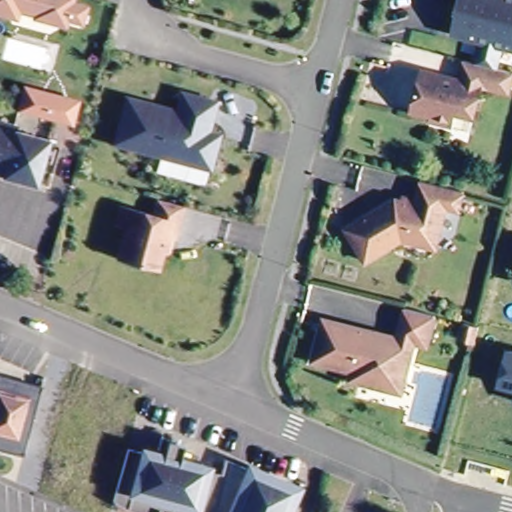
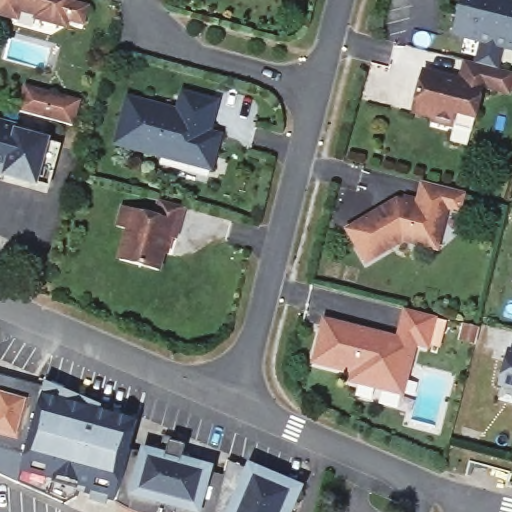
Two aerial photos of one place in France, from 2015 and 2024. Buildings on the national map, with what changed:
unchanged [(86,7),(81,24),(66,20),(58,25),(38,19),(35,15),(18,11),(8,17),(0,15),(0,0),(70,0),(71,3),(86,7)]
unchanged [(499,68),(495,67),(483,64),(479,63),(485,42),(455,34),(460,12),(459,12),(463,0),(512,0),(512,50),(505,49),(499,68)]
unchanged [(433,121),(434,117),(414,112),(425,70),(461,79),(466,60),(479,63),(483,64),(495,67),(499,68),(512,71),(512,92),(485,86),(477,118),(473,131),(456,127),(433,121)]
unchanged [(80,97),(74,123),(17,110),(23,85),(80,97)]
unchanged [(221,136),(212,169),(119,142),(131,98),(180,111),(185,94),(219,102),(210,133),(221,136)]
unchanged [(17,126),(16,131),(48,140),(47,142),(58,145),(47,185),(36,182),(35,185),(0,175),(0,121),(17,126)]
unchanged [(426,249),(406,244),(369,266),(350,233),(395,206),(406,209),(408,201),(421,204),(425,186),(467,197),(462,215),(450,212),(444,236),(439,252),(426,249)]
unchanged [(187,211),(188,211),(180,243),(171,241),(162,275),(124,264),(132,234),(120,231),(126,211),(158,220),(162,204),(187,211)]
unchanged [(386,388),(354,380),(356,371),(317,361),(328,318),(401,337),(409,308),(439,316),(431,346),(419,343),(409,380),(406,393),(386,388)]
unchanged [(477,322),(473,336),(459,332),(462,318),(477,322)]
unchanged [(507,343),(512,344),(512,380),(498,377),(507,343)]
unchanged [(24,451),(0,444),(0,378),(40,390),(35,408),(24,451)]
new [(113,504),(108,502),(107,506),(89,501),(90,498),(78,496),(65,505),(17,485),(21,475),(24,451),(35,408),(40,390),(47,385),(56,388),(57,395),(133,421),(126,438),(128,452),(113,504)]
unchanged [(214,512),(127,512),(113,504),(128,452),(142,455),(143,452),(146,453),(147,449),(158,452),(162,438),(176,442),(175,445),(183,447),(180,458),(201,464),(200,468),(208,470),(207,474),(223,478),(214,512)]
unchanged [(301,497),(297,512),(214,512),(223,478),(226,465),(301,497)]

